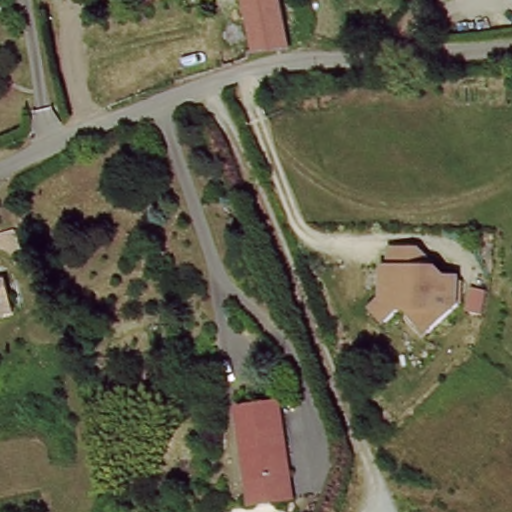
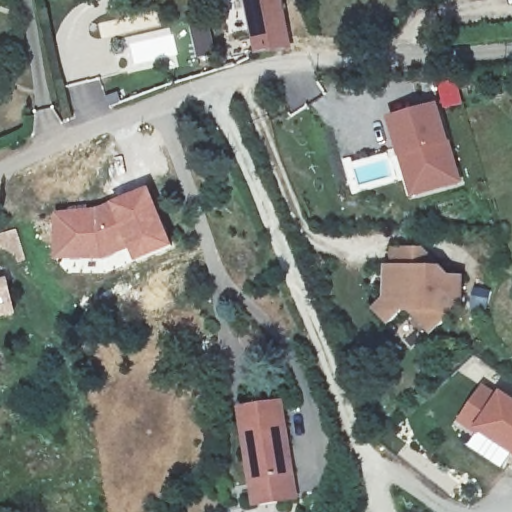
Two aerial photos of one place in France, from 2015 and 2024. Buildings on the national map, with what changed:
unchanged [(185,0),(209,0),(210,4),(188,11),(185,0)]
unchanged [(256,54),(245,0),(277,0),(286,48),(256,54)]
new [(444,83),(458,80),(463,104),(449,107),(444,83)]
new [(440,104),(463,182),(409,199),(387,119),(440,104)]
new [(96,207),(150,188),(175,247),(136,264),(132,252),(103,261),(53,261),(52,211),(96,207)]
new [(15,253),(7,252),(7,249),(0,251),(0,236),(18,230),(27,261),(18,263),(15,253)]
unchanged [(392,265),(394,247),(428,247),(429,267),(462,267),(462,309),(432,340),(414,314),(405,314),(391,330),(368,310),(380,299),(381,267),(392,265)]
unchanged [(6,284),(13,317),(0,320),(0,286),(6,284)]
new [(500,392),(512,400),(512,466),(508,463),(503,470),(468,448),(476,436),(457,424),(481,387),(497,396),(500,392)]
unchanged [(301,480),(248,489),(231,412),(287,398),(301,480)]
unchanged [(301,480),(306,502),(254,512),(248,489),(301,480)]

